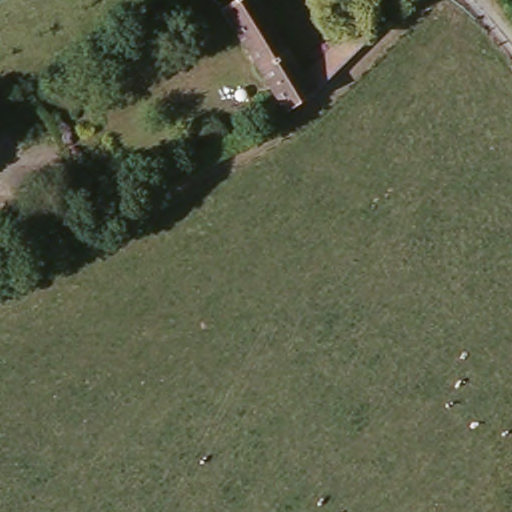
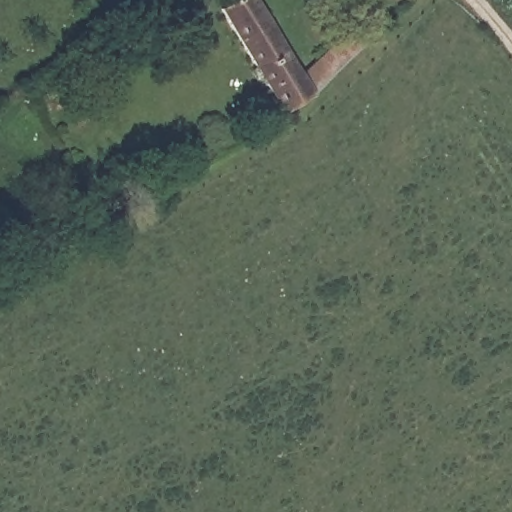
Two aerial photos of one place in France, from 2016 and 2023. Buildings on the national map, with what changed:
unchanged [(220,8),(235,0),(252,0),(269,28),(241,44),(220,8)]
unchanged [(298,79),(336,42),(362,16),(376,29),(357,49),(350,55),(310,97),(282,113),(241,44),(269,28),(298,79)]

